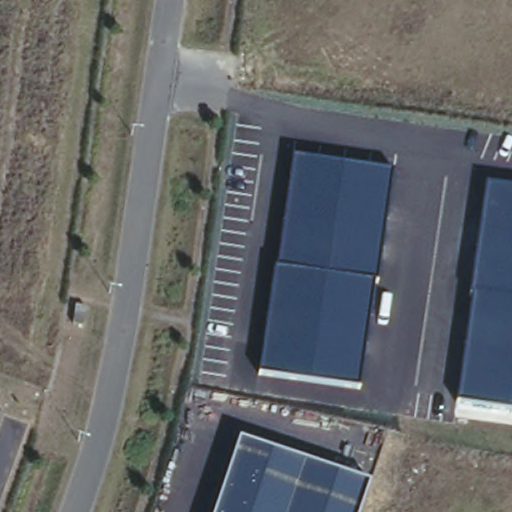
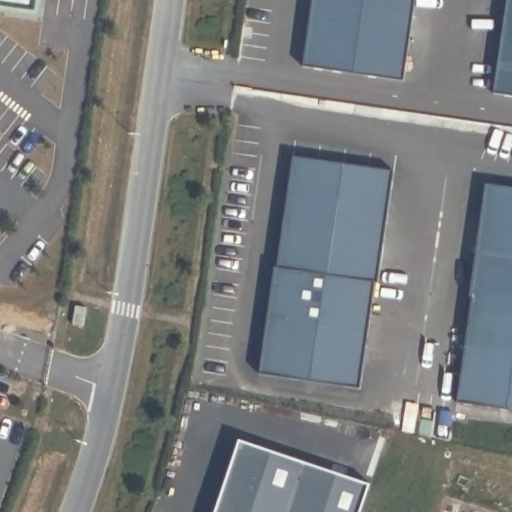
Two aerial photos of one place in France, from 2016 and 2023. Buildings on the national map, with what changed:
new [(32,13),(0,8),(0,0),(34,0),(32,13)]
new [(403,84),(296,70),(306,0),(414,0),(403,84)]
new [(502,0),(512,0),(512,97),(488,94),(502,0)]
unchanged [(292,157),(391,173),(361,389),(259,372),(292,157)]
unchanged [(512,189),(512,410),(455,401),(488,185),(512,189)]
unchanged [(359,512),(214,512),(236,440),(368,483),(359,512)]

